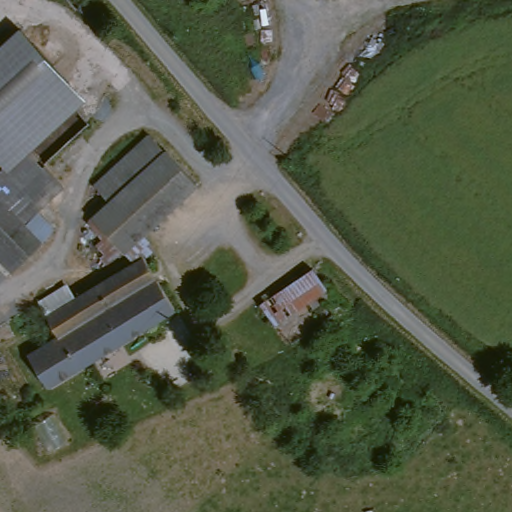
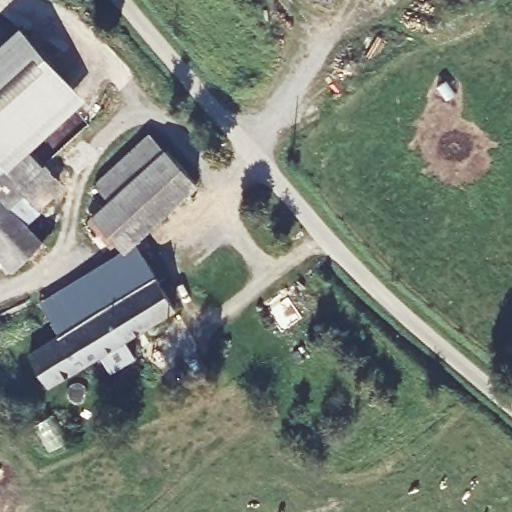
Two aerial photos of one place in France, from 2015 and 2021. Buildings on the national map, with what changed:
unchanged [(1,165),(0,163),(0,48),(22,26),(92,101),(51,142),(40,130),(1,165)]
unchanged [(40,130),(51,142),(60,152),(45,166),(58,180),(20,215),(43,239),(9,272),(0,263),(0,163),(1,165),(40,130)]
unchanged [(60,212),(155,136),(198,189),(116,256),(104,263),(60,212)]
unchanged [(179,310),(54,386),(51,388),(31,355),(61,335),(49,315),(41,301),(69,284),(77,298),(146,257),(179,310)]
unchanged [(259,300),(312,264),(325,285),(331,280),(335,288),(300,311),(306,320),(282,335),(259,300)]

